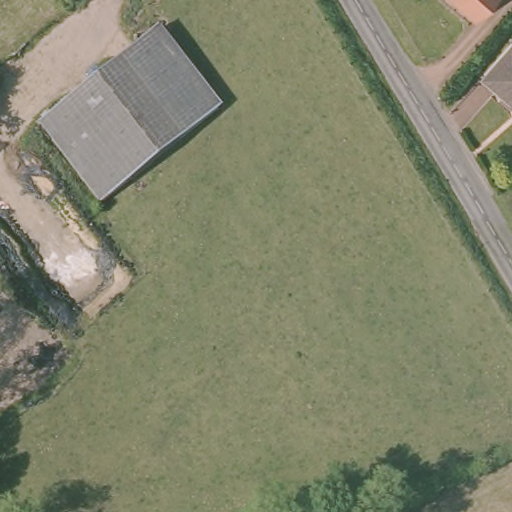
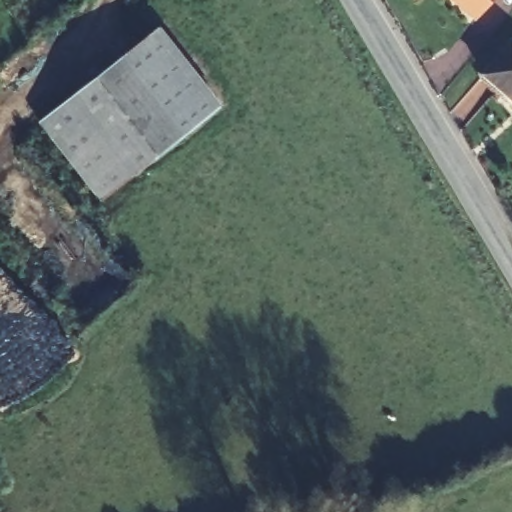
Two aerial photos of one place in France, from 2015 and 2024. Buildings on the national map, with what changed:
unchanged [(455,0),(492,0),(477,17),(455,0)]
unchanged [(143,177),(78,99),(159,31),(222,112),(143,177)]
unchanged [(512,41),(512,97),(485,73),(512,41)]
unchanged [(110,203),(48,125),(78,99),(143,177),(110,203)]

